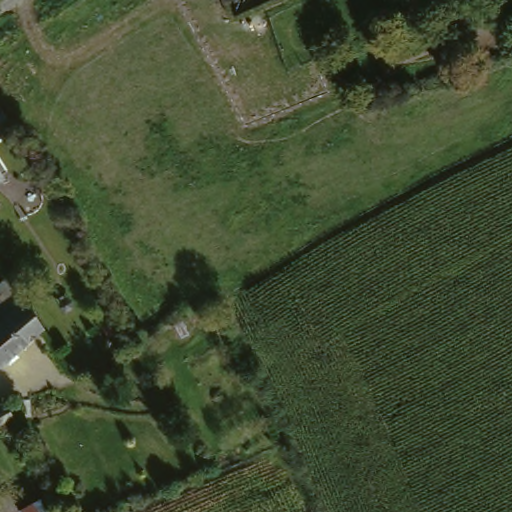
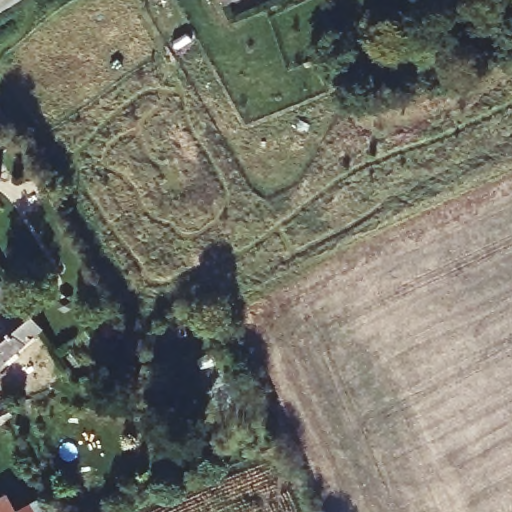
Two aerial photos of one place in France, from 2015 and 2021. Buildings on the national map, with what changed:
unchanged [(230,1),(230,0),(233,0),(230,1)]
unchanged [(2,144),(0,139),(0,113),(14,139),(2,144)]
unchanged [(5,175),(0,179),(0,165),(5,175)]
unchanged [(9,274),(24,289),(29,295),(51,325),(0,367),(0,282),(9,274)]
unchanged [(13,398),(15,401),(24,416),(6,428),(0,419),(0,408),(13,398)]
unchanged [(50,512),(11,512),(36,492),(50,512)]

